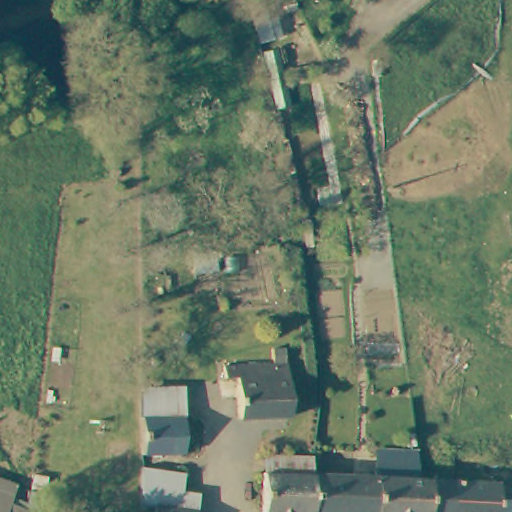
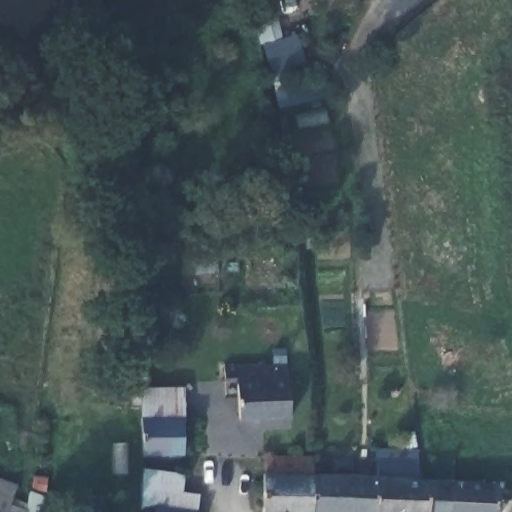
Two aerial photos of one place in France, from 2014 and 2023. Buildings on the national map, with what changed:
unchanged [(293,415),(240,415),(240,377),(226,378),(226,364),(240,363),(292,362),(293,415)]
unchanged [(188,393),(187,416),(184,416),(143,415),(142,391),(188,393)]
unchanged [(184,416),(183,447),(143,445),(143,415),(184,416)]
unchanged [(264,456),(313,457),(313,479),(264,477),(264,456)]
unchanged [(181,469),(180,492),(194,493),(192,509),(152,506),(141,505),(144,467),(181,469)]
unchanged [(13,506),(27,512),(0,512),(0,475),(23,482),(13,506)]
unchanged [(313,512),(265,512),(264,477),(313,479),(313,512)]
unchanged [(378,512),(313,512),(313,479),(379,481),(378,512)]
unchanged [(456,484),(455,512),(378,512),(379,481),(424,483),(456,484)]
unchanged [(496,512),(455,512),(456,484),(497,485),(496,512)]
unchanged [(192,512),(152,512),(152,506),(192,509),(192,512)]

